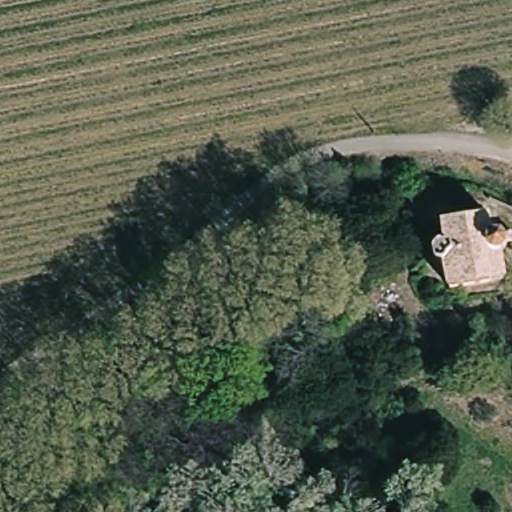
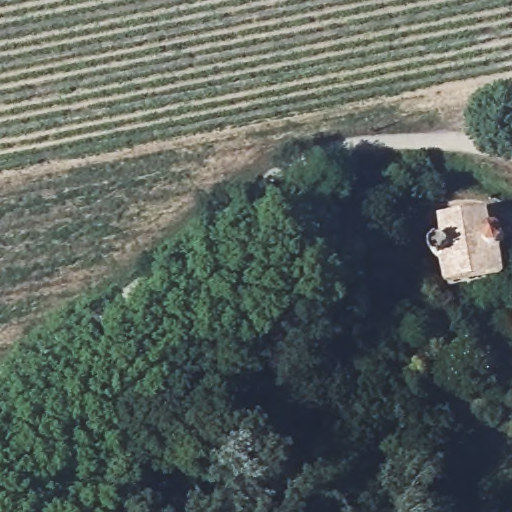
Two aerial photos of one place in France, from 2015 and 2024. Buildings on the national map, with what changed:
unchanged [(503,250),(508,277),(506,279),(453,287),(450,285),(446,259),(444,259),(442,259),(440,258),(438,257),(437,254),(436,253),(436,250),(437,248),(438,246),(439,244),(441,243),(443,243),(444,243),(441,224),(442,223),(496,213),(498,215),(501,232),(502,232),(504,232),(506,233),(508,234),(510,236),(510,238),(511,240),(511,243),(510,245),(509,247),(507,249),(505,250),(503,250)]

